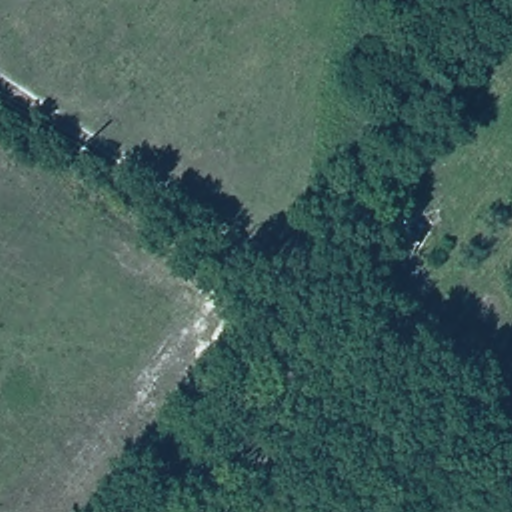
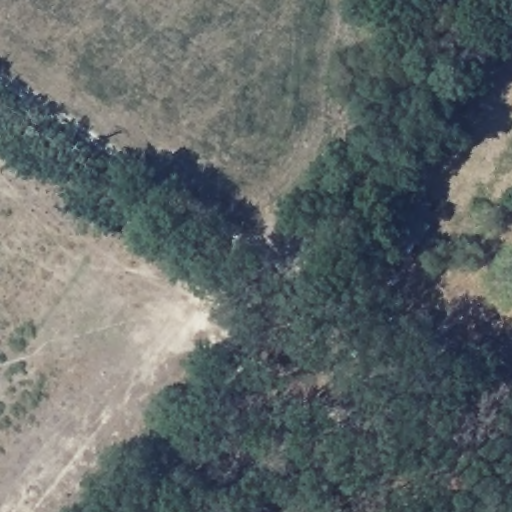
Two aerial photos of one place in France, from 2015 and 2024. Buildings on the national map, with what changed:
unchanged [(427,227),(407,265),(375,246),(392,213),(427,227)]

